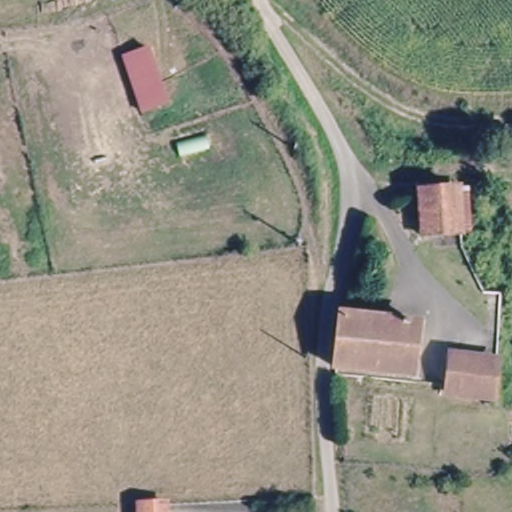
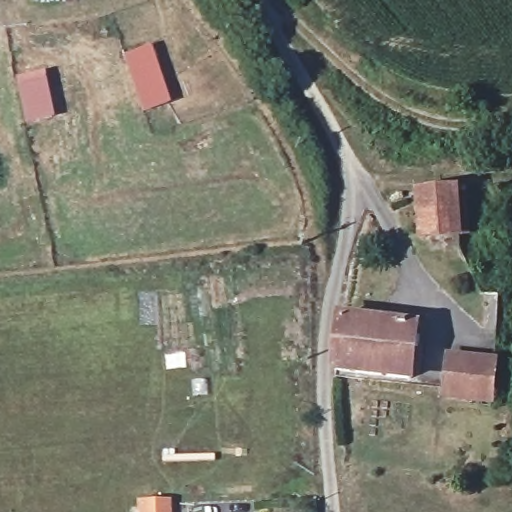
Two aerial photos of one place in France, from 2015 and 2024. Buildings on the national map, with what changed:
unchanged [(150,42),(170,102),(143,108),(121,52),(150,42)]
new [(15,78),(42,71),(54,117),(26,124),(15,78)]
unchanged [(457,182),(455,228),(411,224),(415,178),(457,182)]
unchanged [(412,318),(410,372),(332,364),(335,310),(412,318)]
unchanged [(489,371),(484,408),(437,403),(437,386),(442,334),(490,342),(489,371)]
unchanged [(132,512),(132,500),(161,500),(161,512),(132,512)]

